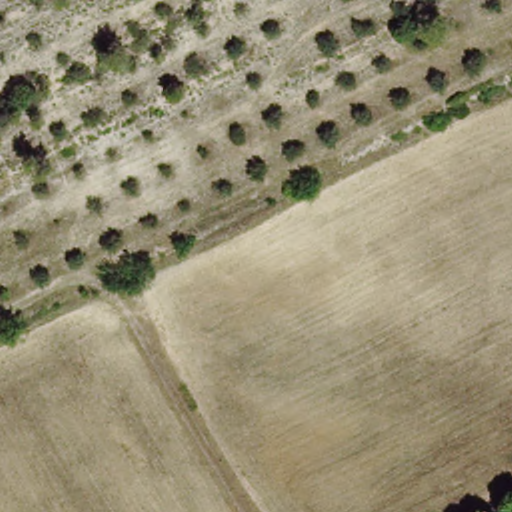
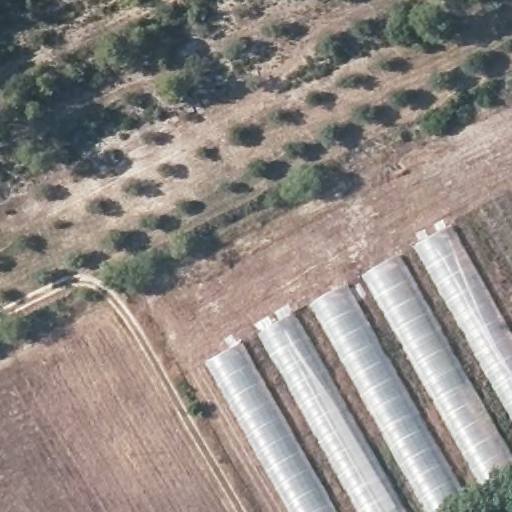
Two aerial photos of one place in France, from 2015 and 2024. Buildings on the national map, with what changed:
new [(452,227),(512,337),(512,483),(460,512),(289,512),(205,366),(452,227)]

